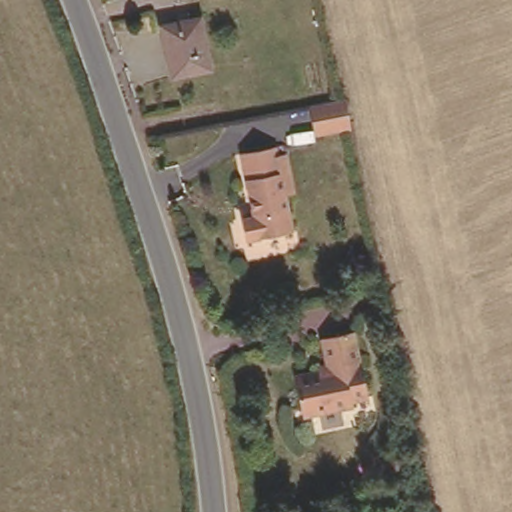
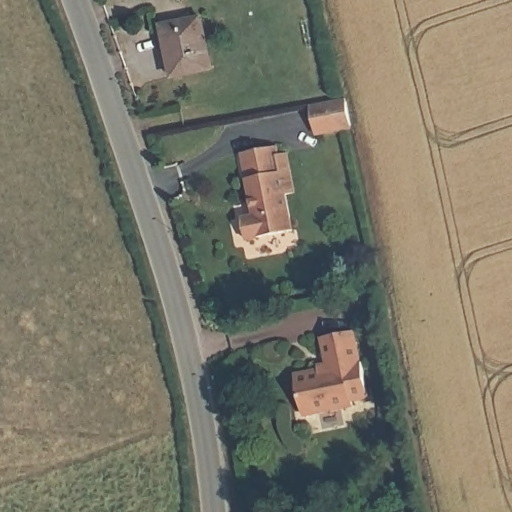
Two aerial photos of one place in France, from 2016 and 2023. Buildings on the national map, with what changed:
unchanged [(199,22),(212,74),(173,83),(160,31),(199,22)]
unchanged [(349,101),(355,130),(314,138),(309,109),(349,101)]
unchanged [(274,154),(276,164),(283,163),(290,198),(284,200),(291,236),(246,244),(242,223),(255,222),(242,159),(274,154)]
unchanged [(315,364),(328,363),(323,337),(354,331),(369,402),(354,405),(356,412),(302,421),(295,377),(317,373),(315,364)]

